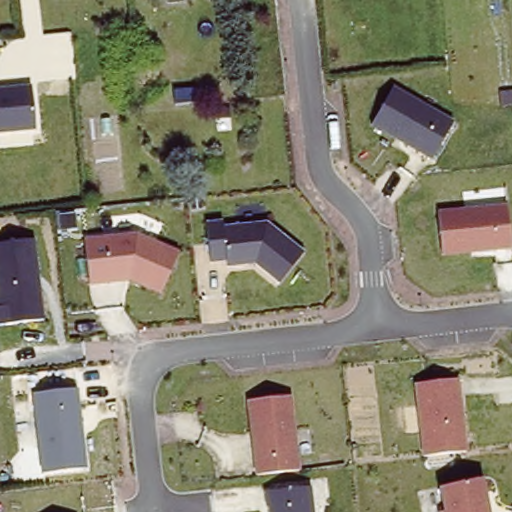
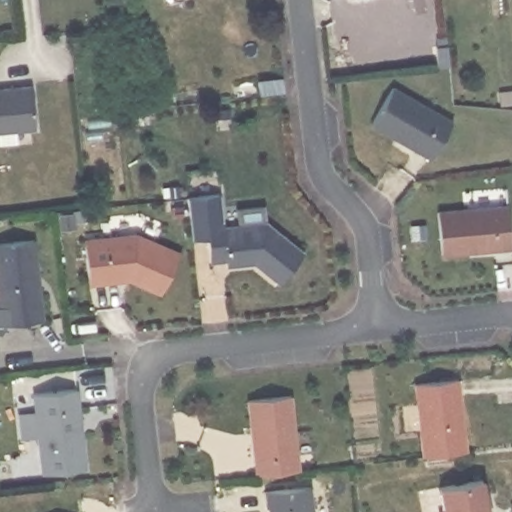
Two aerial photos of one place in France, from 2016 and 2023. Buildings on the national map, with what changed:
unchanged [(32,84),(35,128),(0,132),(0,87),(32,84)]
unchanged [(432,159),(370,123),(392,84),(455,119),(432,159)]
unchanged [(507,204),(512,246),(442,253),(437,212),(507,204)]
unchanged [(304,250),(279,281),(255,262),(227,264),(226,260),(210,261),(205,222),(222,220),(222,225),(267,220),(304,250)]
unchanged [(84,237),(135,235),(180,253),(162,296),(129,282),(90,285),(84,237)]
unchanged [(35,236),(45,319),(0,326),(0,242),(35,236)]
unchanged [(466,451),(422,456),(415,384),(458,380),(466,451)]
unchanged [(32,392),(80,388),(87,466),(39,471),(32,392)]
unchanged [(292,393),(302,468),(255,474),(245,399),(292,393)]
unchanged [(444,510),(439,487),(483,478),(490,512),(437,512),(437,511),(444,510)]
unchanged [(269,512),(267,492),(310,486),(313,512),(269,512)]

